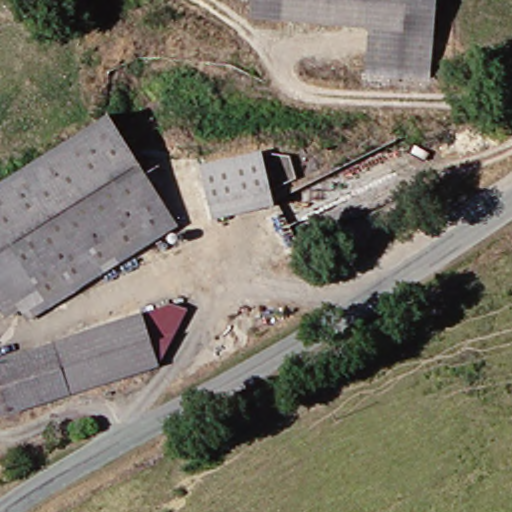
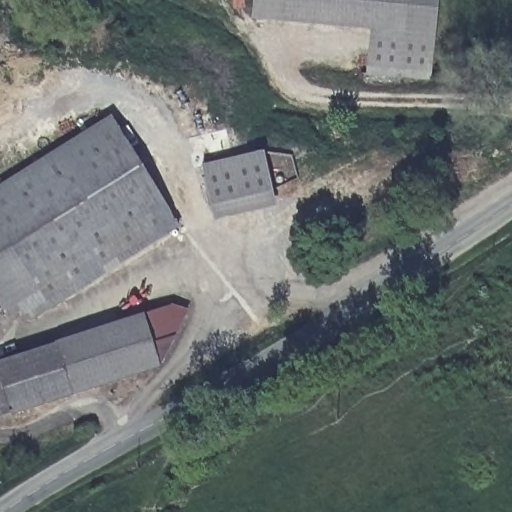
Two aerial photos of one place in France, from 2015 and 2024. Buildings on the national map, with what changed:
unchanged [(366,70),(368,23),(252,12),(254,0),(436,0),(431,74),(366,70)]
unchanged [(0,232),(0,188),(115,119),(175,216),(42,301),(0,232)]
unchanged [(196,166),(272,148),(282,187),(286,202),(209,221),(205,205),(196,166)]
unchanged [(42,301),(24,312),(10,322),(0,306),(0,232),(42,301)]
unchanged [(170,296),(186,300),(159,351),(142,307),(170,296)]
unchanged [(48,346),(142,307),(159,351),(107,372),(21,406),(2,363),(48,346)]
unchanged [(0,414),(0,364),(2,363),(21,406),(0,414)]

